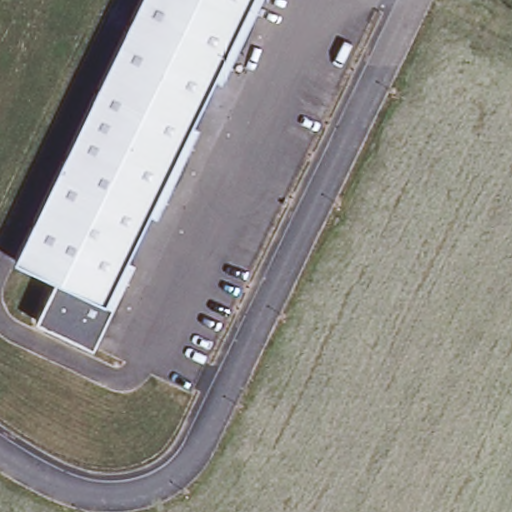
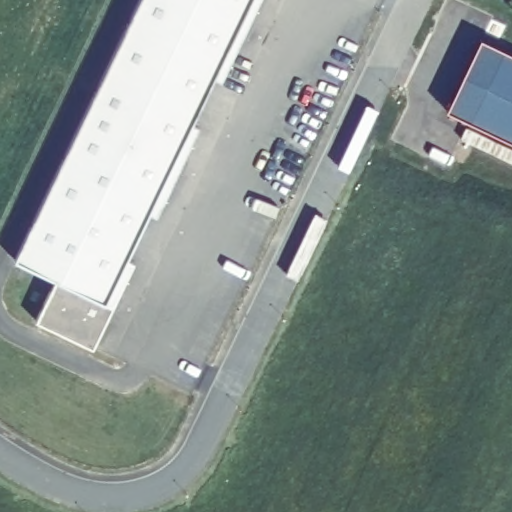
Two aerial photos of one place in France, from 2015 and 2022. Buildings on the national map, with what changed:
unchanged [(134,262),(92,348),(35,320),(55,278),(15,259),(139,0),(252,0),(126,258),(134,262)]
new [(480,38),(502,49),(468,121),(445,109),(480,38)]
new [(512,53),(512,142),(468,121),(502,49),(512,53)]

